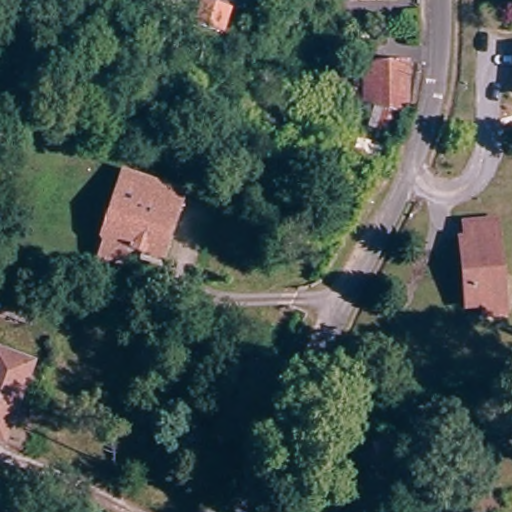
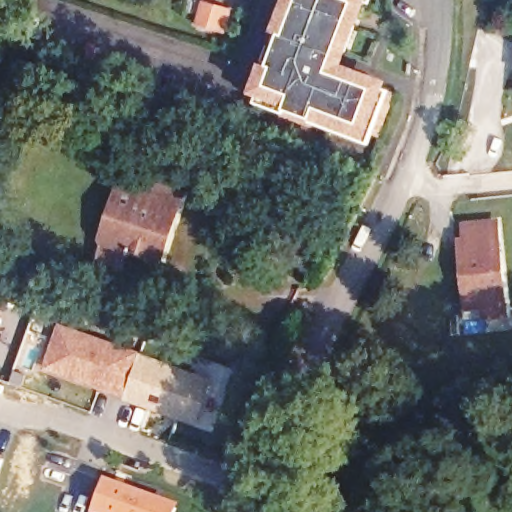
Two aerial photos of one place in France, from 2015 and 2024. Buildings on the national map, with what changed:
new [(367,143),(312,124),(313,120),(289,112),(287,117),(257,107),(260,99),(252,96),(263,64),(270,67),(283,36),(275,32),(287,0),(371,0),(346,66),(390,83),(367,143)]
unchanged [(223,32),(218,30),(199,24),(205,5),(224,11),(229,13),(223,32)]
demolished [(365,103),(366,67),(411,66),(410,118),(397,143),(367,133),(376,107),(365,103)]
unchanged [(101,259),(106,244),(128,180),(154,189),(184,199),(179,215),(163,263),(129,252),(124,267),(101,259)]
unchanged [(486,319),(485,309),(467,310),(460,244),(466,243),(464,227),(497,224),(505,308),(506,318),(486,319)]
new [(2,316),(0,322),(0,302),(6,304),(2,316)]
new [(214,379),(198,425),(42,370),(60,323),(214,379)]
demolished [(4,445),(0,444),(0,353),(34,365),(4,445)]
new [(4,458),(0,468),(0,457),(4,458)]
new [(179,512),(95,512),(107,480),(181,508),(179,512)]

